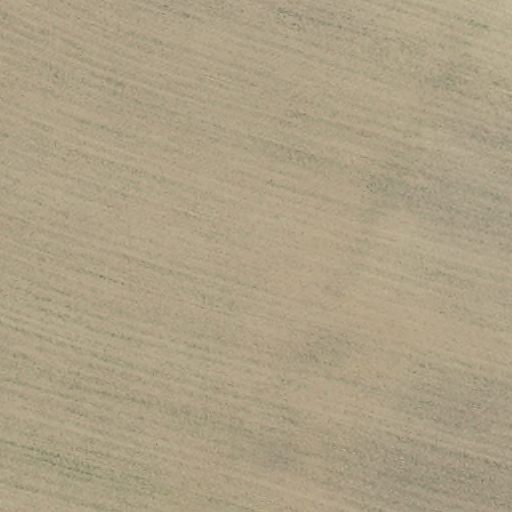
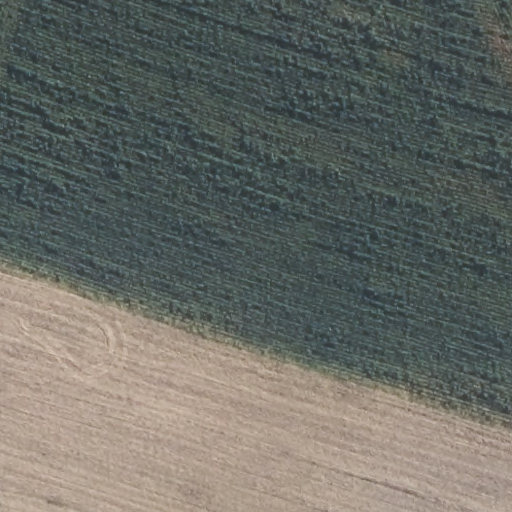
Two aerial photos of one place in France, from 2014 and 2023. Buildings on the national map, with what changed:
[]

